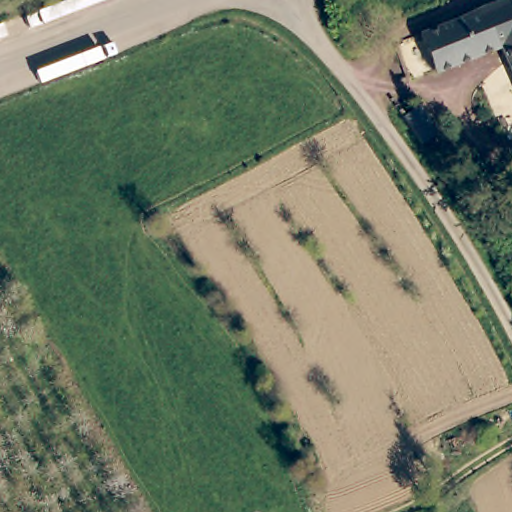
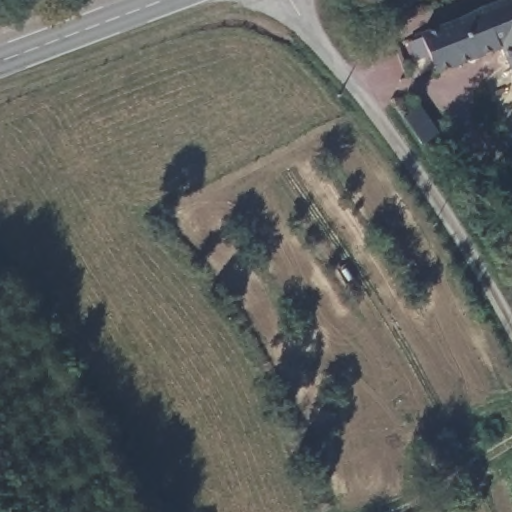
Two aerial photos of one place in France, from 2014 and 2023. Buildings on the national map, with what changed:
unchanged [(437,77),(435,72),(421,36),(512,0),(512,74),(501,50),(437,77)]
unchanged [(408,83),(395,46),(421,36),(435,72),(408,83)]
unchanged [(442,126),(421,144),(406,121),(427,104),(442,126)]
unchanged [(445,163),(429,142),(462,119),(477,140),(445,163)]

